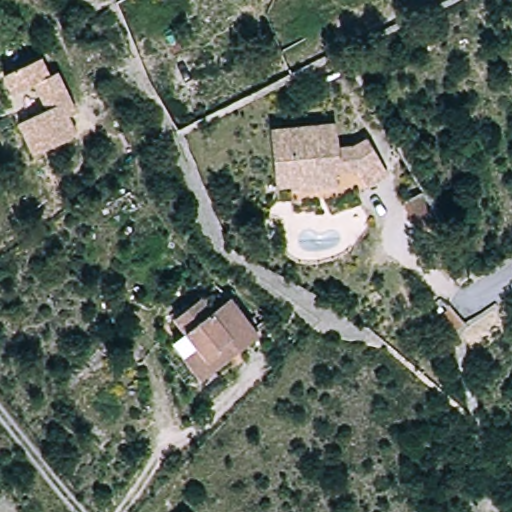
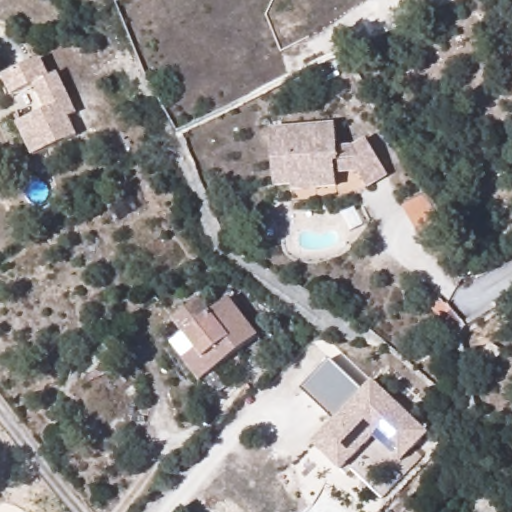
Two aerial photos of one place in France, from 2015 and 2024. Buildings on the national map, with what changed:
unchanged [(7,81),(46,63),(55,80),(62,77),(82,117),(74,121),(83,140),(37,160),(22,128),(50,115),(38,89),(16,100),(7,81)]
unchanged [(292,190),(273,191),(268,134),(332,129),(334,153),(349,152),(366,141),(388,174),(366,188),(356,173),(334,175),(335,191),(315,192),(292,194),(292,190)]
unchanged [(418,232),(403,204),(424,195),(438,221),(418,232)]
unchanged [(252,336),(198,379),(170,345),(183,334),(172,320),(196,300),(207,315),(224,301),(252,336)]
new [(401,462),(374,435),(340,470),(312,442),(335,420),(302,390),(329,362),(361,392),(372,380),(428,433),(401,462)]

